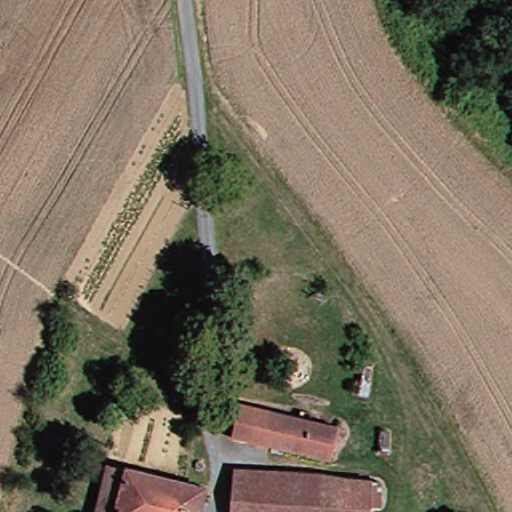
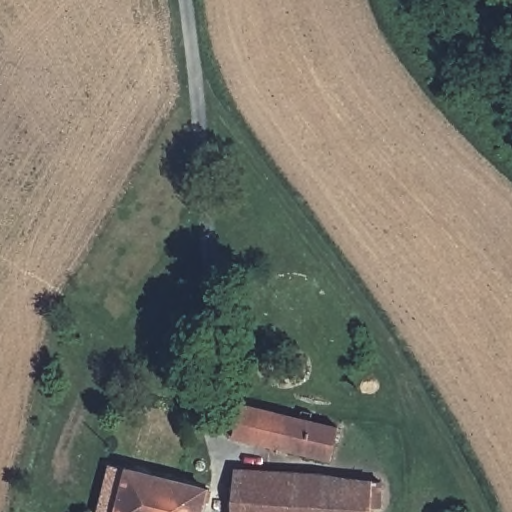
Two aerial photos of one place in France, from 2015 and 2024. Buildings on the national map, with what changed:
unchanged [(235,432),(239,412),(242,400),(343,422),(334,456),(235,432)]
unchanged [(203,512),(103,512),(111,467),(210,491),(203,512)]
unchanged [(328,476),(327,512),(240,512),(242,472),(328,476)]
unchanged [(328,476),(375,482),(373,512),(327,512),(328,476)]

